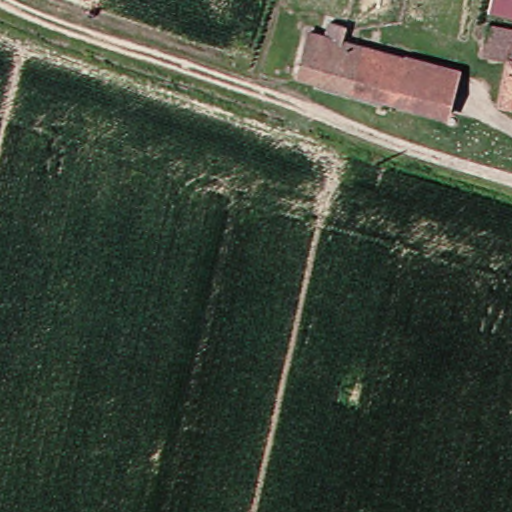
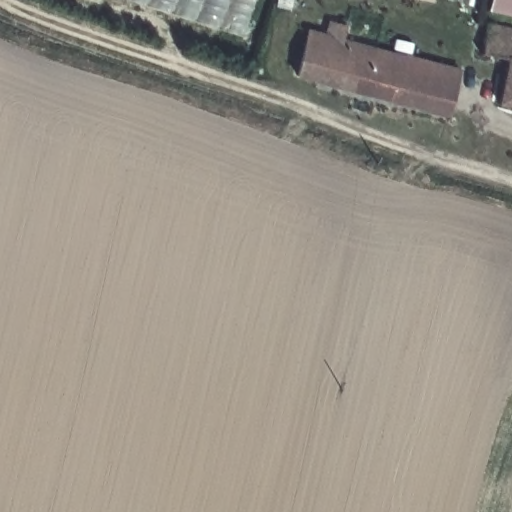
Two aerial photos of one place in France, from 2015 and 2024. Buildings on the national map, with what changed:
new [(131,0),(257,0),(244,37),(131,0)]
new [(488,12),(491,0),(512,0),(512,17),(488,12)]
unchanged [(304,77),(315,32),(335,36),(339,22),(354,26),(351,41),(413,60),(402,102),(304,77)]
unchanged [(507,106),(511,59),(486,57),(489,42),(480,41),(482,27),(512,30),(512,106),(507,106)]
unchanged [(413,60),(463,71),(452,115),(402,102),(413,60)]

